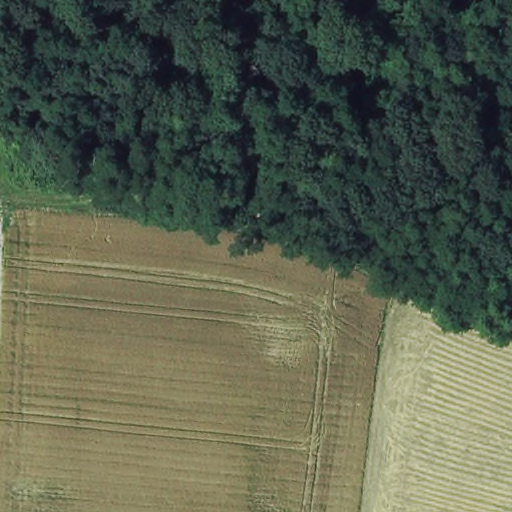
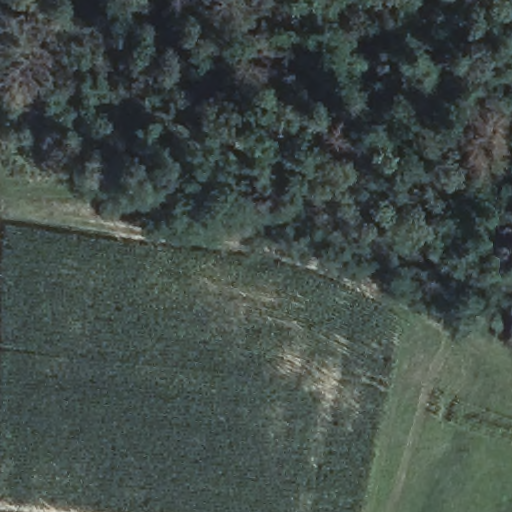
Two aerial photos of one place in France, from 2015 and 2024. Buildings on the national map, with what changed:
unchanged [(292,121),(295,131),(223,148),(220,137),(292,121)]

